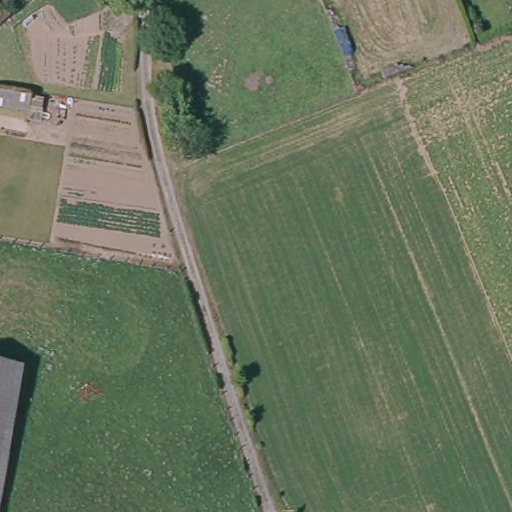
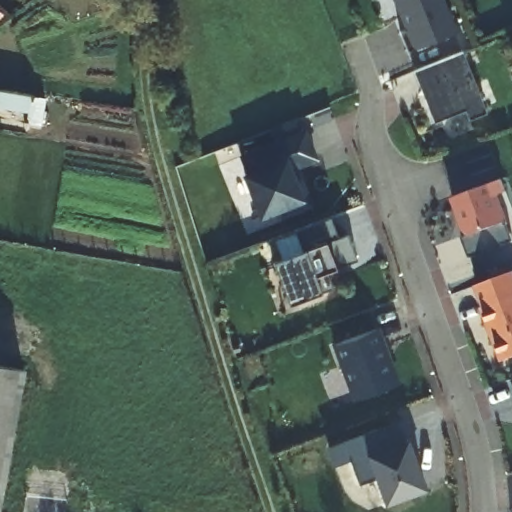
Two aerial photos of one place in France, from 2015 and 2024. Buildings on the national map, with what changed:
new [(455,33),(407,52),(400,32),(408,28),(403,17),(400,15),(394,0),(441,0),(455,33)]
new [(487,112),(468,120),(463,109),(433,122),(413,70),(462,50),(487,112)]
new [(242,174),(248,172),(241,154),(305,128),(317,160),(300,166),(313,206),(285,219),(281,210),(260,219),(242,174)]
new [(500,179),(505,191),(496,195),(512,238),(512,241),(468,257),(460,236),(465,234),(452,197),(500,179)]
new [(295,230),(330,216),(337,238),(348,234),(358,259),(327,271),(332,287),(322,292),(289,305),(274,262),(305,249),(295,230)]
new [(512,272),(512,357),(502,361),(475,286),(512,272)]
new [(400,385),(354,402),(334,346),(380,328),(400,385)]
unchanged [(0,499),(0,366),(23,370),(0,499)]
new [(329,448),(397,422),(405,441),(337,467),(329,448)]
new [(408,439),(427,489),(387,504),(377,479),(360,485),(350,461),(408,439)]

